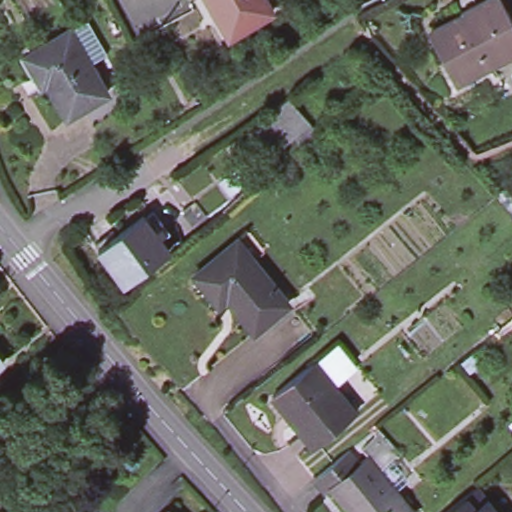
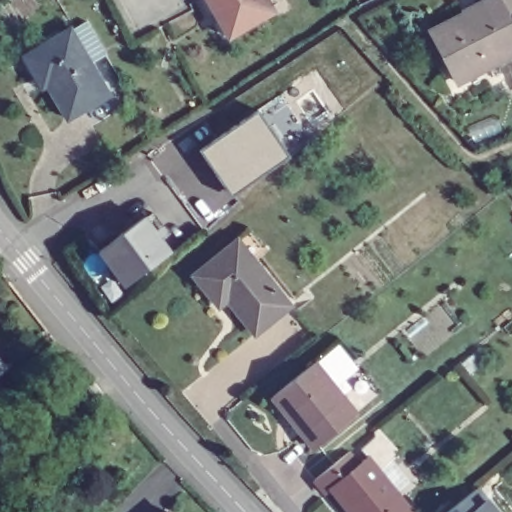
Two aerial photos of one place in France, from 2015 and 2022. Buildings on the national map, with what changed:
unchanged [(272,11),(228,37),(207,0),(265,0),(272,11)]
unchanged [(465,19),(480,12),(477,5),(486,0),(498,0),(499,1),(512,27),(512,54),(487,67),(487,66),(456,81),(450,69),(449,69),(435,41),(429,31),(462,14),(465,19)]
unchanged [(75,39),(89,63),(107,94),(67,118),(47,86),(43,88),(36,77),(24,56),(70,30),(75,39)]
demolished [(247,131),(268,114),(272,110),(287,97),(288,98),(318,133),(302,146),(294,136),(269,157),(247,131)]
new [(289,157),(230,197),(199,149),(257,111),(289,157)]
demolished [(182,211),(195,202),(205,217),(193,226),(182,211)]
unchanged [(143,217),(169,251),(124,285),(98,250),(95,246),(113,233),(116,237),(143,217)]
unchanged [(217,305),(211,297),(194,275),(237,241),(247,233),(260,250),(250,258),(259,269),(270,282),(289,305),(254,333),(250,328),(227,299),(218,306),(217,305)]
unchanged [(313,447),(272,396),(314,362),(337,344),(356,367),(333,386),(355,413),(313,447)]
unchanged [(4,367),(0,370),(0,362),(4,367)]
unchanged [(375,436),(374,431),(377,428),(400,452),(380,470),(361,449),(375,436)]
unchanged [(325,494),(314,479),(350,451),(360,464),(368,459),(411,512),(350,512),(332,489),(325,494)]
unchanged [(478,510),(490,501),(498,512),(452,512),(468,499),(478,510)]

